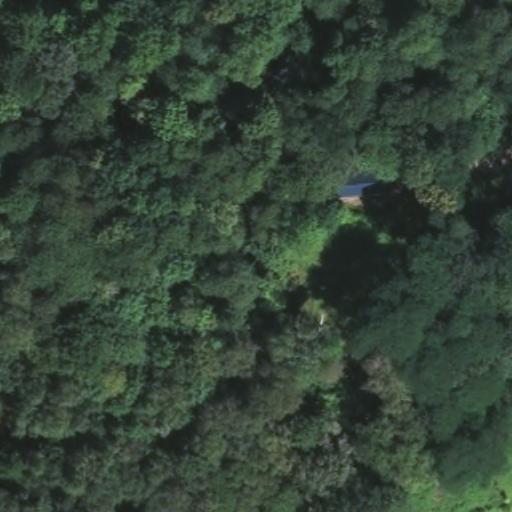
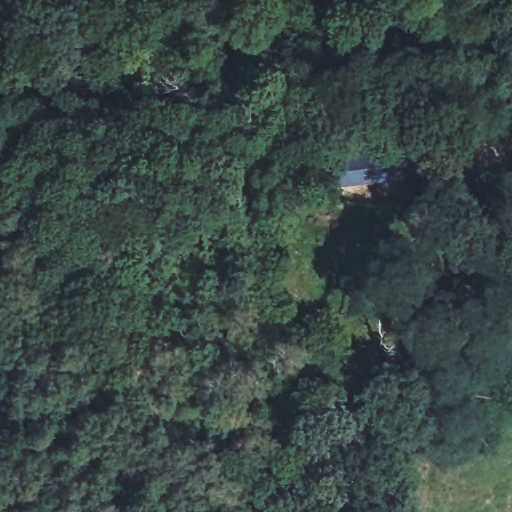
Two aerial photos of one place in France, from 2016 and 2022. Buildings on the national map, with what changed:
unchanged [(335,191),(333,164),(383,161),(386,186),(335,191)]

